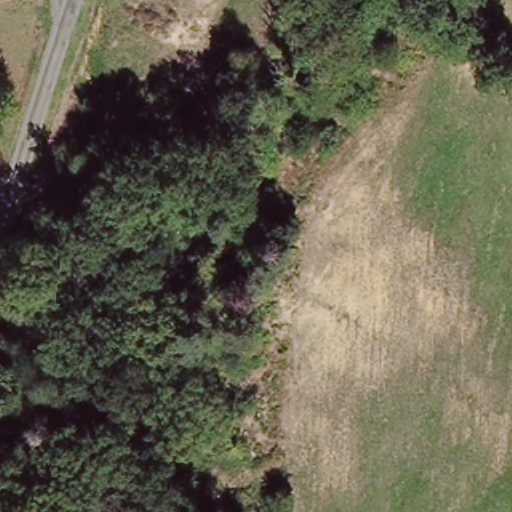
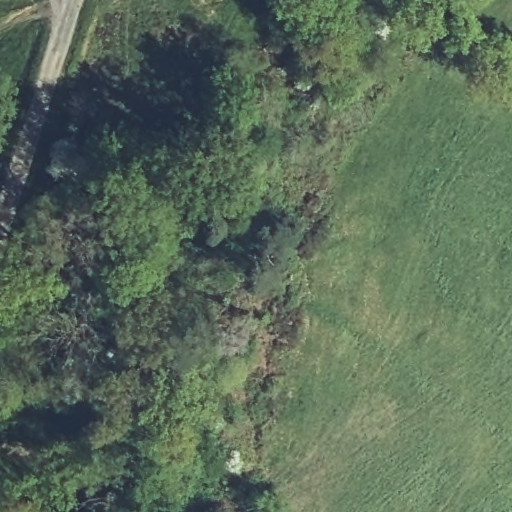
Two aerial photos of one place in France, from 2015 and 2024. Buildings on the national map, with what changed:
[]

